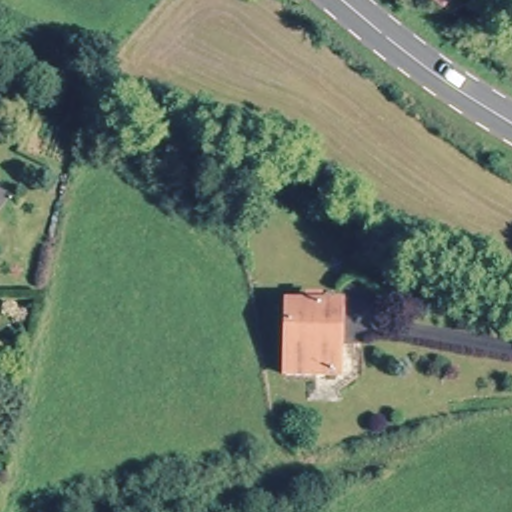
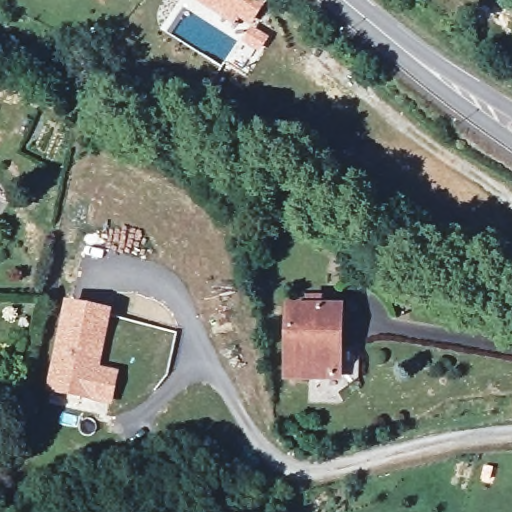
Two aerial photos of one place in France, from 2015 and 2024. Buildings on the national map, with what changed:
unchanged [(314,367),(283,364),(287,300),(303,301),(304,288),(316,288),(316,302),(335,303),(333,335),(331,368),(314,367)]
new [(113,311),(101,366),(121,373),(114,406),(48,391),(66,300),(113,311)]
unchanged [(331,368),(333,335),(350,337),(349,353),(355,355),(353,370),(331,383),(315,381),(314,367),(331,368)]

